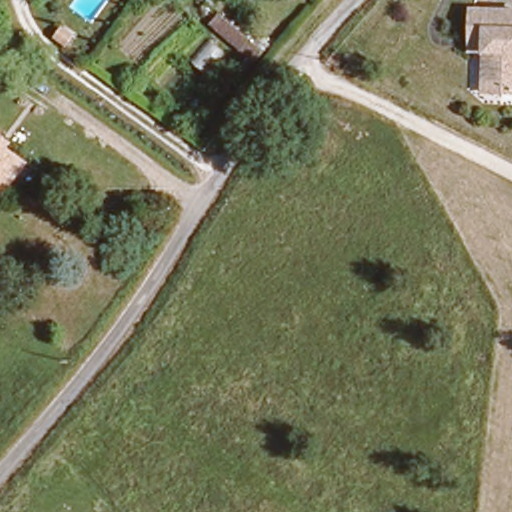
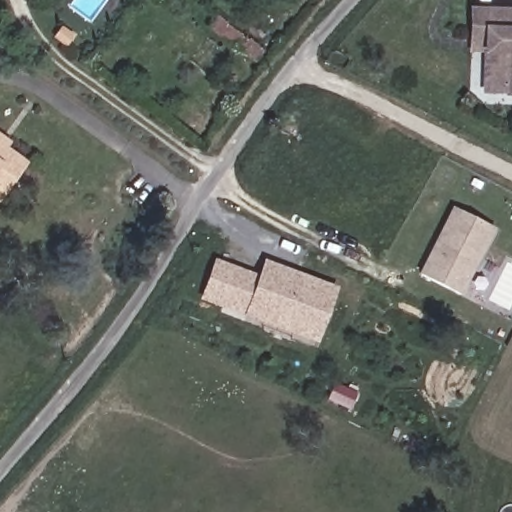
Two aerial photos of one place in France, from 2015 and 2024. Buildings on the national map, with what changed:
unchanged [(483,46),(470,46),(470,37),(471,6),(512,6),(512,87),(502,87),(483,86),(483,78),(483,46)]
unchanged [(205,24),(217,10),(269,55),(256,70),(205,24)]
unchanged [(14,158),(21,164),(0,192),(0,147),(14,158)]
new [(497,232),(460,297),(422,276),(460,210),(497,232)]
new [(209,295),(222,260),(247,270),(266,277),(252,312),(234,305),(209,295)]
new [(302,331),(305,321),(275,310),(271,319),(252,312),(271,264),(339,289),(320,338),(302,331)]

